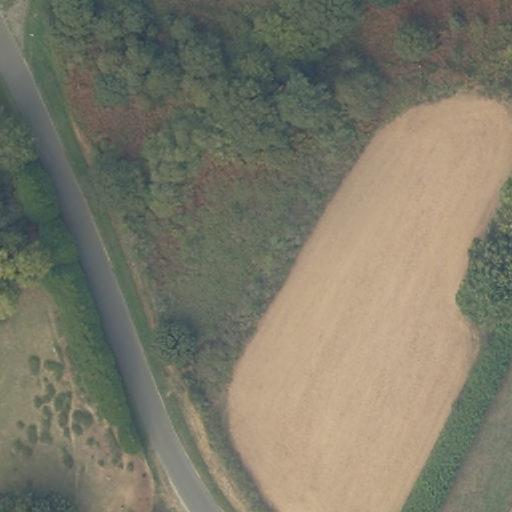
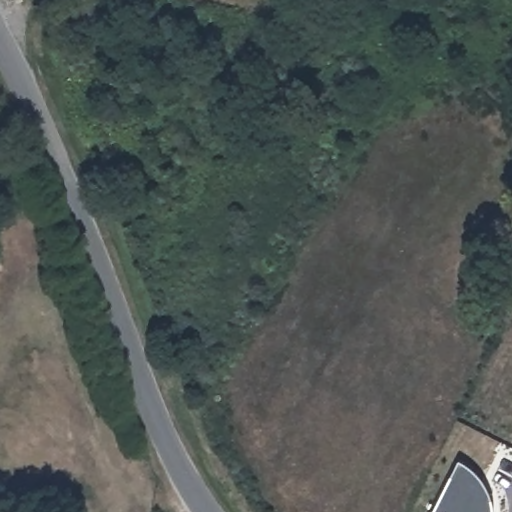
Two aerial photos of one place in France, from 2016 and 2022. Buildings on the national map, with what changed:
new [(466,462),(475,470),(483,481),(490,496),(492,511),(492,512),(430,512),(457,457),(466,462)]

